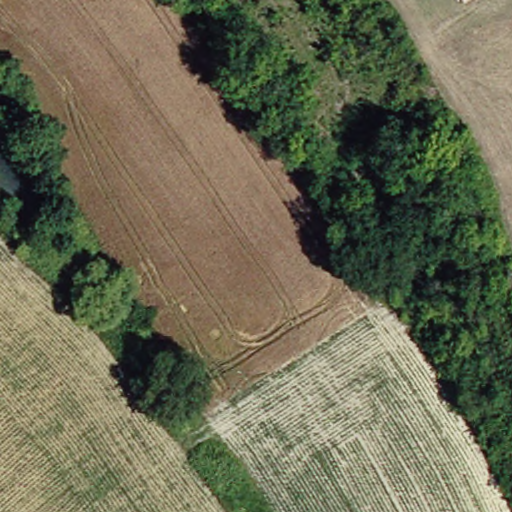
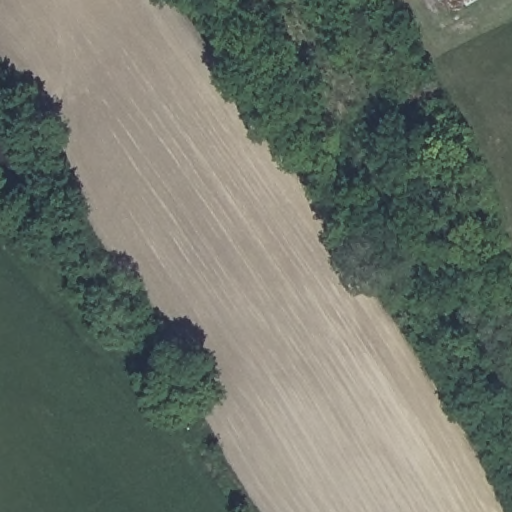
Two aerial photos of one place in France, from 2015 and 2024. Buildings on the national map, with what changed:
unchanged [(480,3),(477,0),(483,0),(480,3)]

